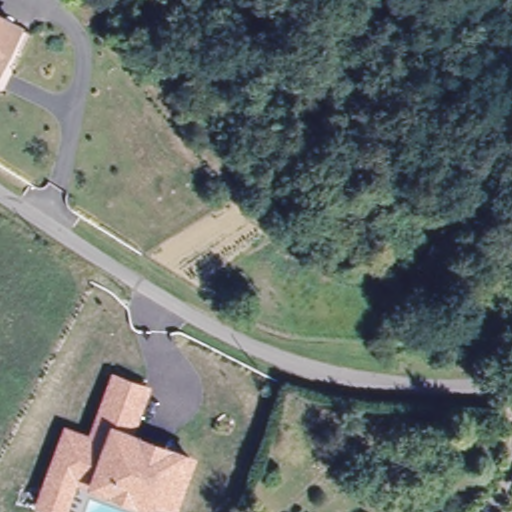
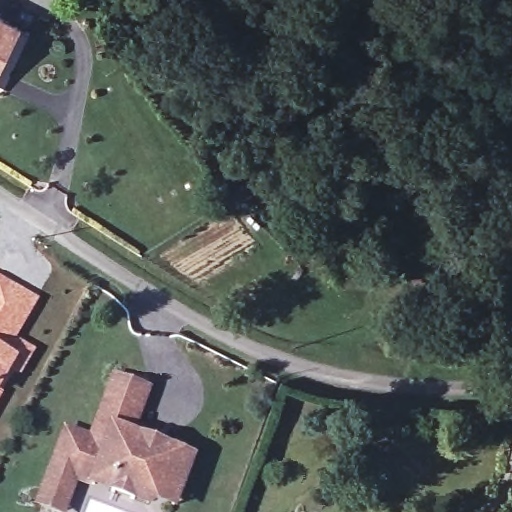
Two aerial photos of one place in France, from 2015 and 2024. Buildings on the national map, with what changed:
unchanged [(0,55),(0,23),(13,30),(0,55)]
new [(17,339),(35,350),(20,376),(12,371),(0,395),(0,276),(40,300),(17,339)]
unchanged [(141,507),(107,495),(71,482),(66,494),(60,512),(56,512),(36,505),(43,485),(55,453),(60,440),(74,445),(85,448),(106,385),(137,396),(121,442),(134,447),(158,455),(184,465),(170,505),(167,512),(142,503),(141,507)]

